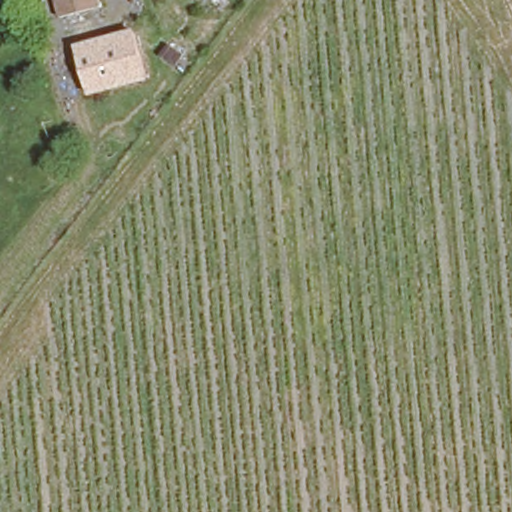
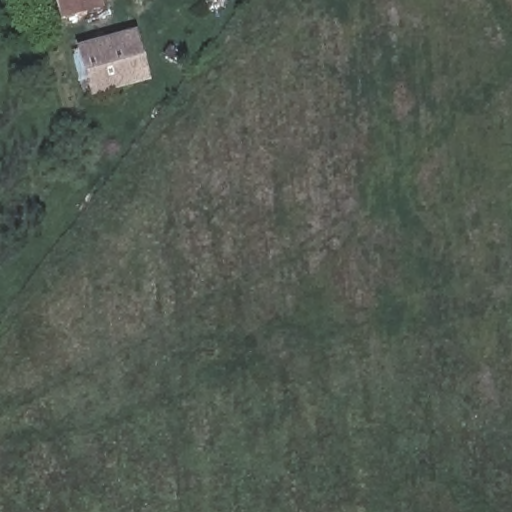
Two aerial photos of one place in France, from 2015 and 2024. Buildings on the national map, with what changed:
unchanged [(61,17),(56,0),(100,0),(101,5),(61,17)]
unchanged [(80,41),(130,26),(141,75),(93,90),(80,41)]

